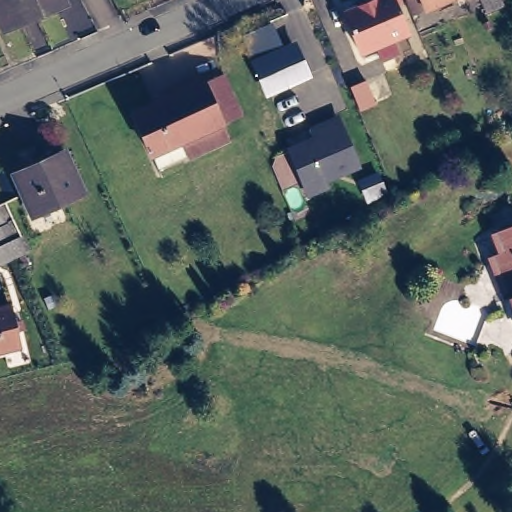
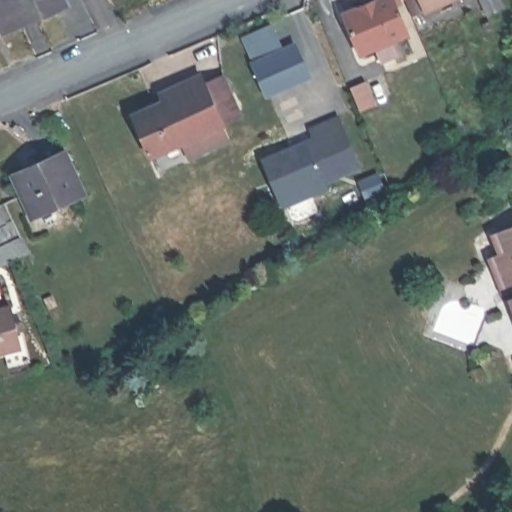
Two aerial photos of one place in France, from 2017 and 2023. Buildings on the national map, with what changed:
unchanged [(70,2),(11,27),(0,2),(0,0),(69,0),(70,2)]
unchanged [(371,0),(400,0),(402,5),(397,7),(407,33),(362,52),(345,11),(371,0)]
unchanged [(407,0),(449,0),(413,15),(407,0)]
unchanged [(486,12),(484,8),(480,0),(499,0),(502,7),(496,10),(486,12)]
unchanged [(279,45),(295,40),(311,77),(265,95),(240,37),(271,24),(279,45)]
unchanged [(223,120),(227,128),(233,126),(236,132),(190,152),(183,137),(153,150),(136,109),(225,70),(242,111),(223,120)]
unchanged [(350,85),(365,79),(376,103),(360,111),(350,85)]
unchanged [(313,137),(310,127),(338,115),(362,168),(327,182),(330,190),(306,199),(286,147),(313,137)]
unchanged [(69,154),(85,192),(38,213),(21,174),(69,154)]
unchanged [(3,206),(8,217),(0,221),(0,207),(3,206)]
unchanged [(10,222),(15,233),(0,240),(0,226),(10,222)]
unchanged [(17,237),(21,235),(27,250),(8,257),(0,261),(0,244),(17,237)]
unchanged [(21,301),(31,342),(0,349),(0,305),(21,301)]

